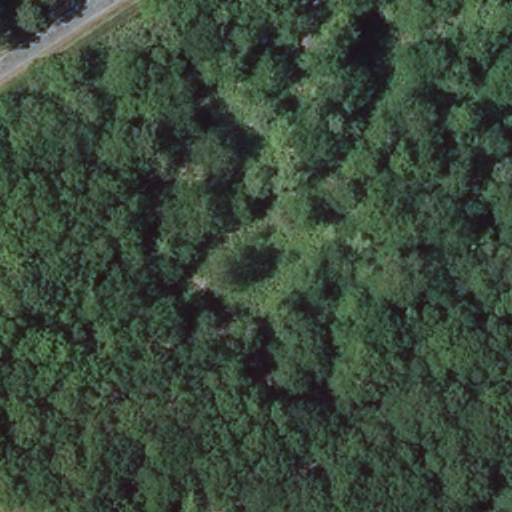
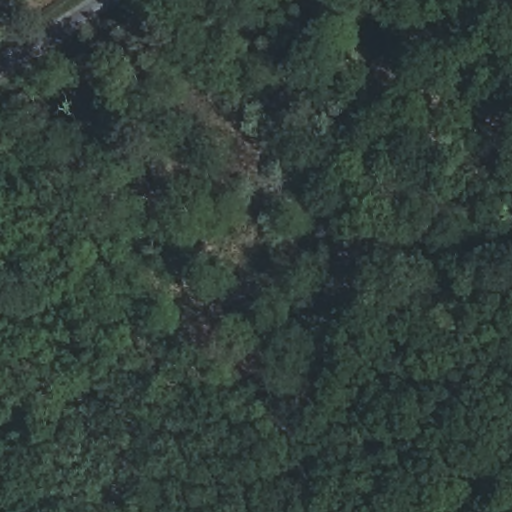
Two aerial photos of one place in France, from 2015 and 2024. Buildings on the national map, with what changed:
[]

